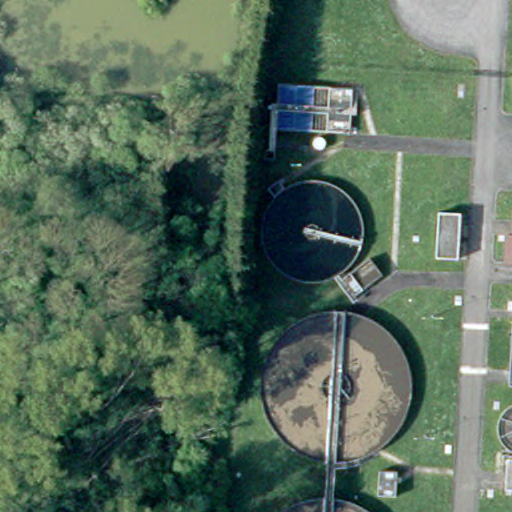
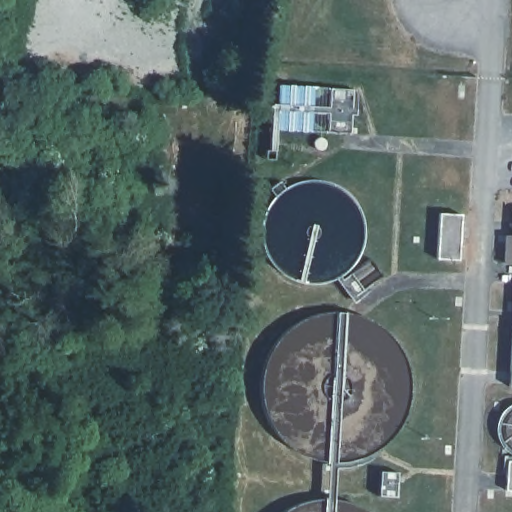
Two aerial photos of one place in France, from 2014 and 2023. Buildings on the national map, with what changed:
unchanged [(442,259),(444,213),(466,214),(464,260),(442,259)]
unchanged [(507,264),(508,235),(512,236),(512,264),(507,264)]
unchanged [(341,283),(376,256),(389,276),(354,301),(341,283)]
unchanged [(509,491),(511,461),(512,462),(512,492),(509,491)]
unchanged [(379,497),(379,470),(401,471),(399,498),(379,497)]

